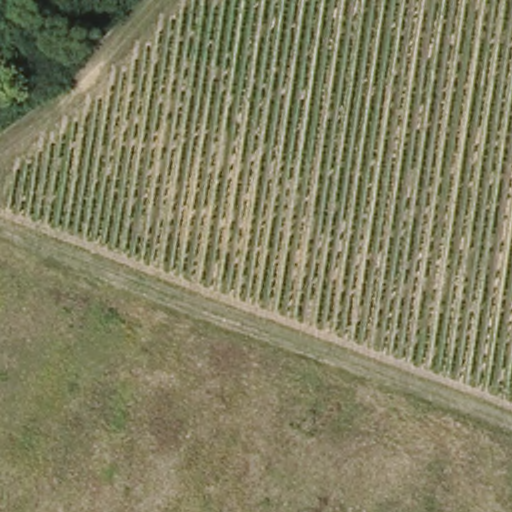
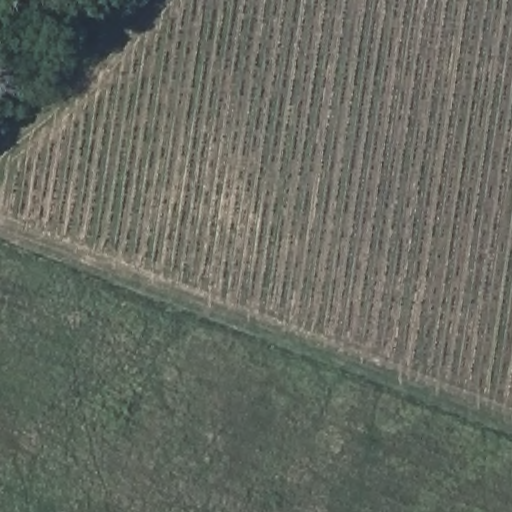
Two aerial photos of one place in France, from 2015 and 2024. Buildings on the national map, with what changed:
[]

